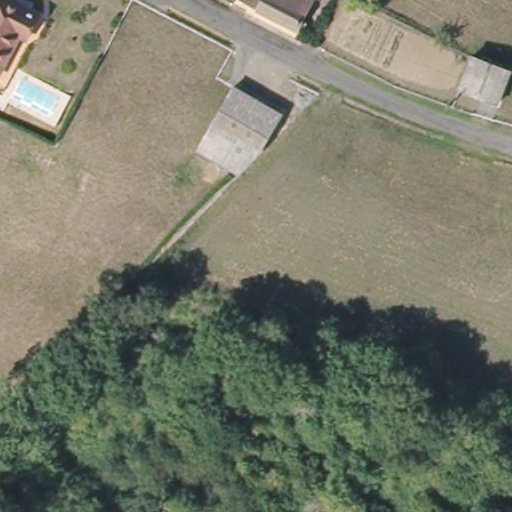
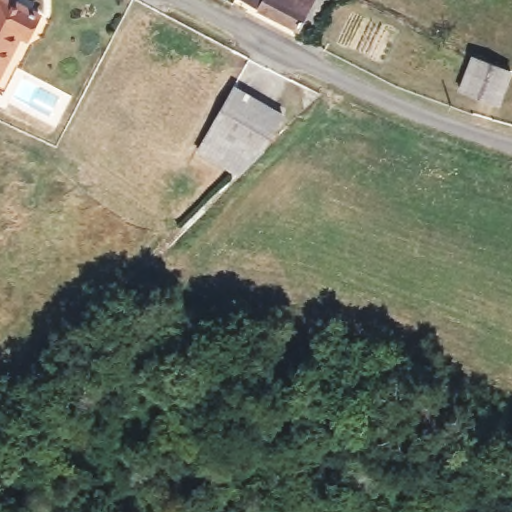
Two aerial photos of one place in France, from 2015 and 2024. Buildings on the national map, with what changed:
unchanged [(28,44),(18,37),(0,75),(0,0),(10,0),(40,15),(28,44)]
unchanged [(267,4),(258,0),(317,0),(303,26),(267,4)]
unchanged [(499,98),(461,83),(470,54),(508,69),(499,98)]
unchanged [(198,148),(239,89),(284,119),(237,178),(198,148)]

